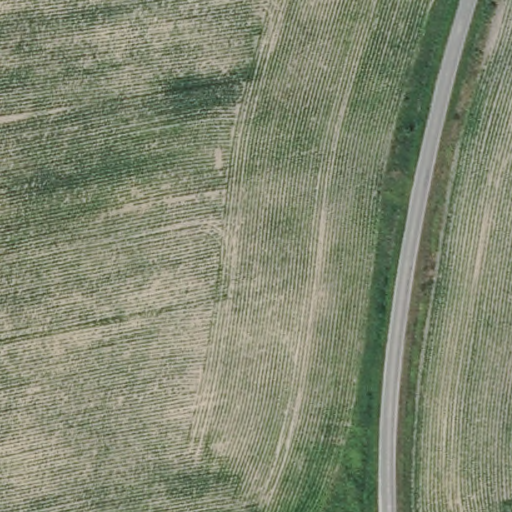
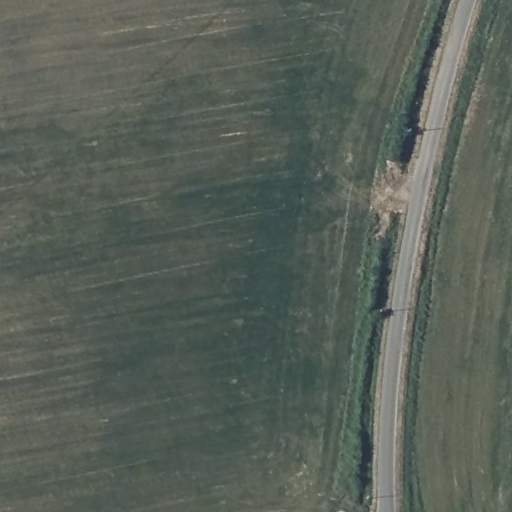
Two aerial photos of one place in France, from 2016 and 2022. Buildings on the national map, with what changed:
[]

